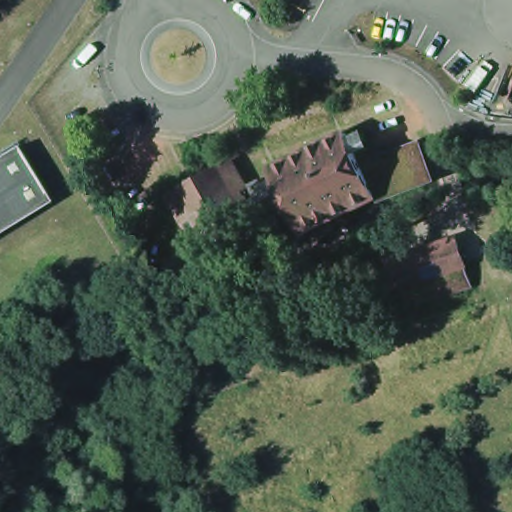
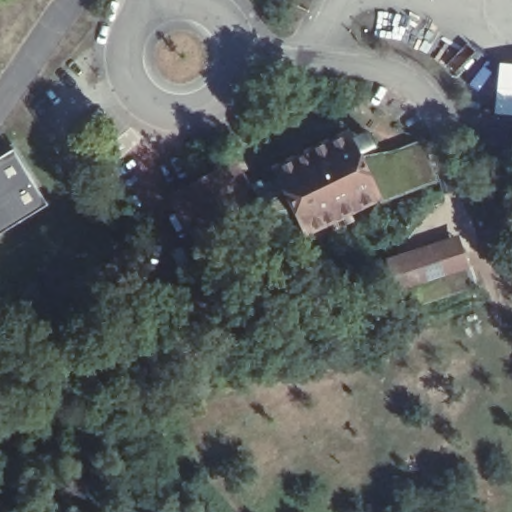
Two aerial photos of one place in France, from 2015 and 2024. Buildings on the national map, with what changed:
new [(497,61),(512,62),(512,116),(492,114),(497,61)]
unchanged [(273,172),(347,137),(362,129),(367,141),(389,131),(404,162),(424,155),(432,172),(435,182),(412,191),(378,203),(360,212),(355,215),(303,240),(289,207),(282,212),(266,176),(273,172)]
unchanged [(48,207),(0,237),(0,161),(15,152),(48,207)]
unchanged [(102,166),(110,182),(92,191),(85,175),(102,166)]
unchanged [(220,189),(240,193),(254,217),(249,220),(253,227),(212,251),(195,220),(180,227),(165,202),(180,194),(213,175),(220,189)]
unchanged [(512,204),(512,250),(490,257),(475,216),(512,204)]
unchanged [(460,239),(470,266),(397,290),(388,262),(460,239)]

